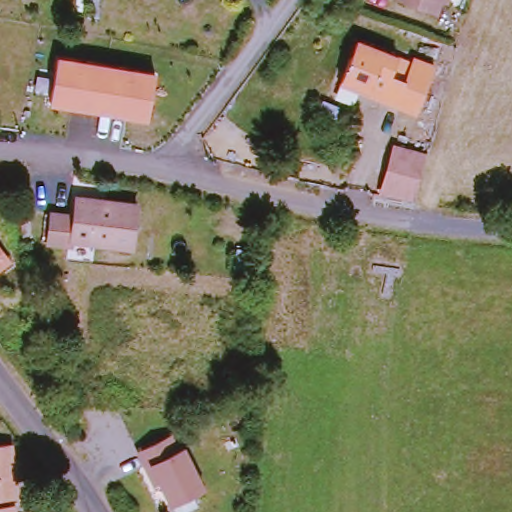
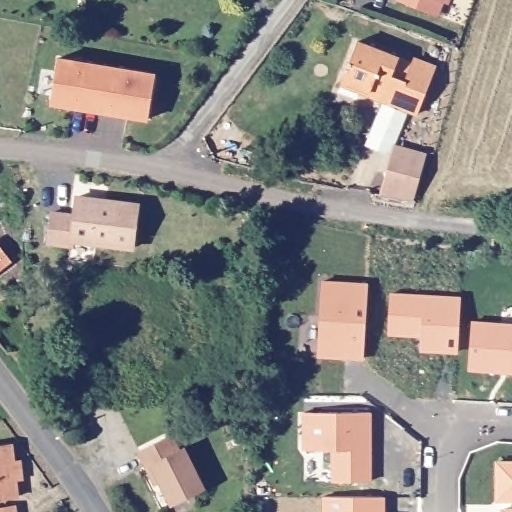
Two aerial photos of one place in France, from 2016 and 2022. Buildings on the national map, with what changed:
unchanged [(449,0),(443,15),(406,0),(454,0),(453,2),(449,0)]
unchanged [(348,86),(349,82),(350,80),(366,44),(367,40),(372,42),(422,64),(423,60),(444,70),(424,118),(375,97),(361,91),(348,86)]
unchanged [(158,73),(150,124),(51,109),(61,57),(158,73)]
unchanged [(429,155),(415,204),(378,196),(395,145),(429,155)]
unchanged [(78,244),(77,250),(73,250),(53,247),(57,217),(73,219),(80,220),(82,201),(143,209),(138,251),(78,244)]
unchanged [(7,268),(0,274),(0,260),(7,268)]
new [(365,362),(317,355),(324,278),(366,283),(365,362)]
new [(459,351),(422,350),(423,335),(390,333),(392,295),(462,300),(459,351)]
new [(509,372),(506,370),(498,369),(495,372),(466,370),(469,323),(512,326),(512,373),(509,372)]
new [(372,408),(372,477),(335,477),(335,445),(306,445),(306,408),(372,408)]
unchanged [(154,467),(146,451),(179,435),(186,450),(191,447),(212,489),(179,505),(168,482),(163,485),(154,467)]
unchanged [(20,460),(26,458),(28,477),(22,477),(25,496),(0,500),(0,444),(18,442),(20,460)]
new [(497,494),(499,455),(512,456),(512,495),(497,494)]
new [(383,498),(383,512),(325,512),(325,498),(383,498)]
new [(508,504),(512,504),(512,512),(507,512),(508,504)]
unchanged [(23,506),(24,512),(0,512),(0,510),(23,506)]

